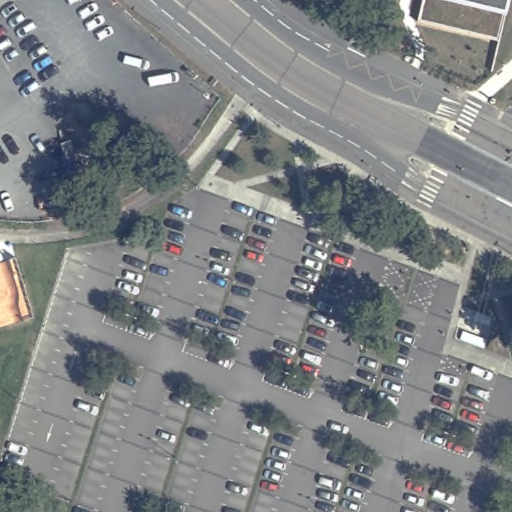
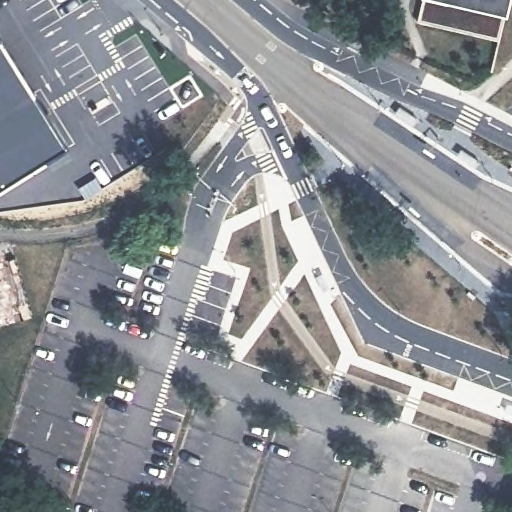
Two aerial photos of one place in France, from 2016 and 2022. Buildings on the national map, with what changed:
unchanged [(505,10),(499,39),(419,19),(423,0),(507,0),(505,10)]
new [(69,150),(0,190),(0,40),(2,39),(69,150)]

